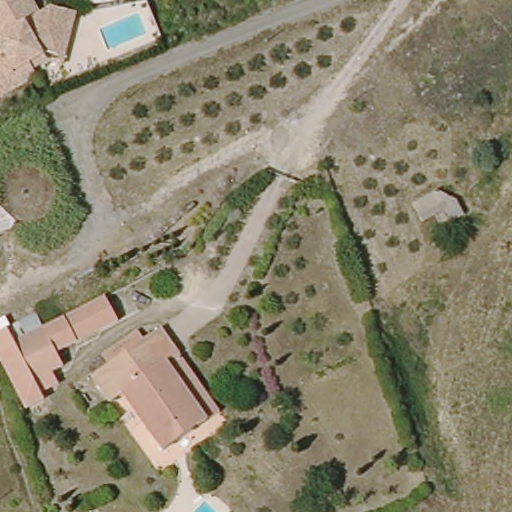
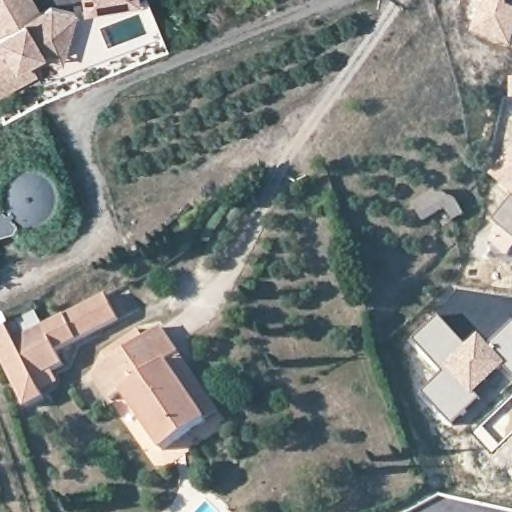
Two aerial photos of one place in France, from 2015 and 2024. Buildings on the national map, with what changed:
unchanged [(0,0),(30,0),(40,18),(52,10),(75,15),(65,56),(41,54),(45,61),(25,69),(30,80),(0,94),(0,0)]
new [(139,0),(140,4),(84,14),(81,0),(139,0)]
new [(472,13),(476,0),(512,0),(512,45),(511,47),(470,34),(476,14),(472,13)]
new [(508,75),(512,76),(512,97),(508,97),(508,75)]
new [(489,174),(512,146),(512,194),(489,174)]
unchanged [(432,207),(417,214),(410,202),(420,195),(432,192),(440,191),(457,204),(442,214),(432,207)]
new [(500,229),(490,221),(512,194),(512,249),(506,256),(489,243),(500,229)]
unchanged [(41,404),(25,413),(0,370),(0,335),(29,319),(37,332),(99,297),(114,320),(53,356),(60,368),(45,377),(52,388),(37,397),(41,404)]
new [(438,314),(467,344),(439,372),(410,340),(438,314)]
new [(512,322),(512,379),(504,369),(507,366),(489,343),(512,322)]
unchanged [(178,353),(167,362),(205,423),(163,451),(123,392),(107,403),(89,375),(105,364),(95,349),(135,325),(143,338),(160,327),(178,353)]
new [(439,372),(467,344),(479,333),(489,343),(507,366),(504,369),(475,394),(480,399),(450,425),(420,393),(439,372)]
unchanged [(219,414),(205,423),(167,362),(178,353),(219,414)]

